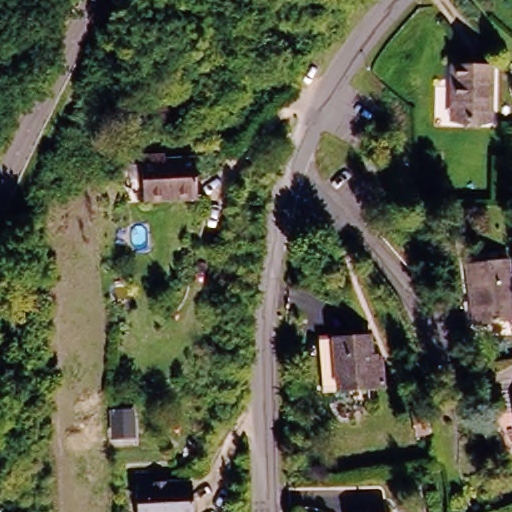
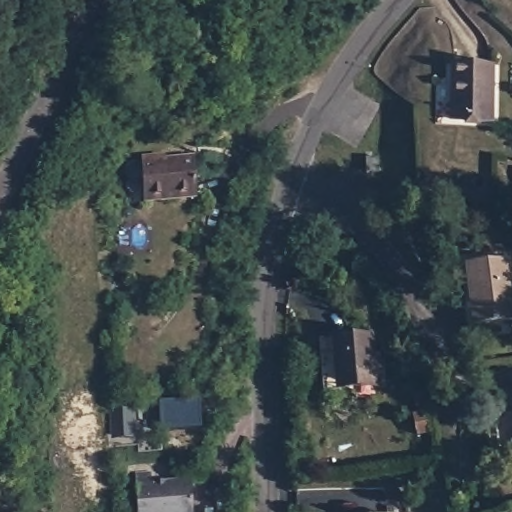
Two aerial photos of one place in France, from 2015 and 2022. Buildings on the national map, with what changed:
unchanged [(450,92),(452,60),(493,62),(492,118),(456,117),(450,117),(450,92)]
unchanged [(163,155),(198,164),(189,203),(138,190),(148,148),(164,151),(163,155)]
unchanged [(379,157),(379,168),(366,169),(366,158),(379,157)]
unchanged [(474,321),(466,259),(508,254),(512,285),(512,316),(474,321)]
unchanged [(353,387),(337,388),(333,337),(349,336),(384,333),(388,375),(389,384),(353,387)]
new [(161,400),(202,400),(201,434),(162,430),(161,400)]
unchanged [(130,404),(138,438),(110,441),(110,406),(130,404)]
unchanged [(136,483),(135,471),(151,471),(151,483),(191,481),(192,512),(137,512),(136,483)]

